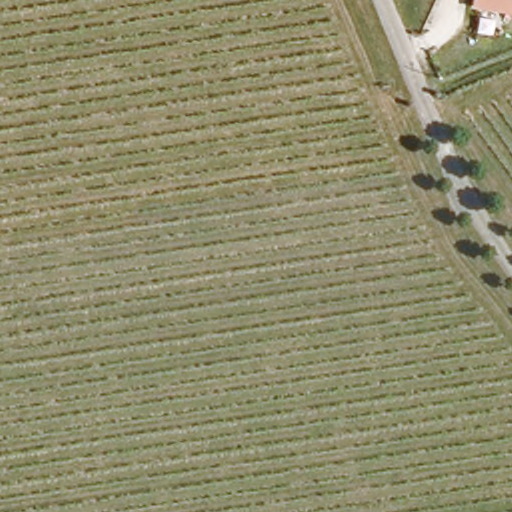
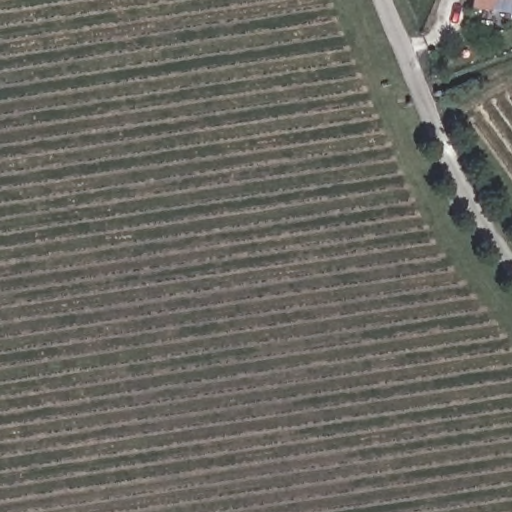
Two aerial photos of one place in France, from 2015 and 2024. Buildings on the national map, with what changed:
unchanged [(473,0),(512,0),(512,14),(472,9),(473,0)]

